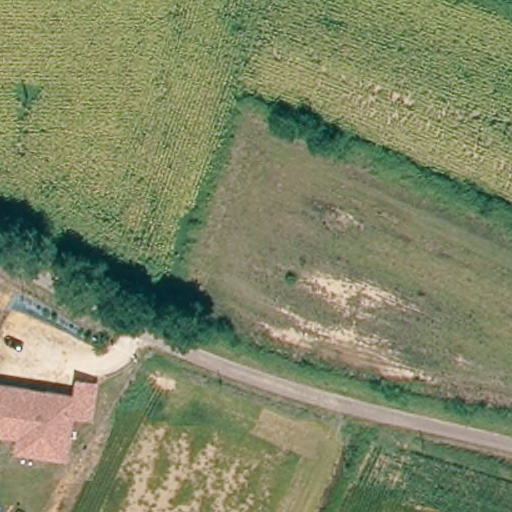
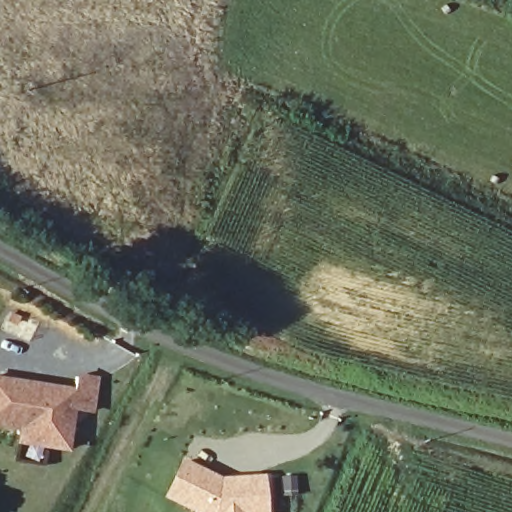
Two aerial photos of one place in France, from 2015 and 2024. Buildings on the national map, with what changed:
unchanged [(14,444),(16,430),(0,427),(0,376),(76,388),(78,374),(102,377),(95,415),(76,413),(70,452),(14,444)]
new [(188,460),(218,475),(225,478),(267,477),(269,512),(206,512),(170,493),(188,460)]

